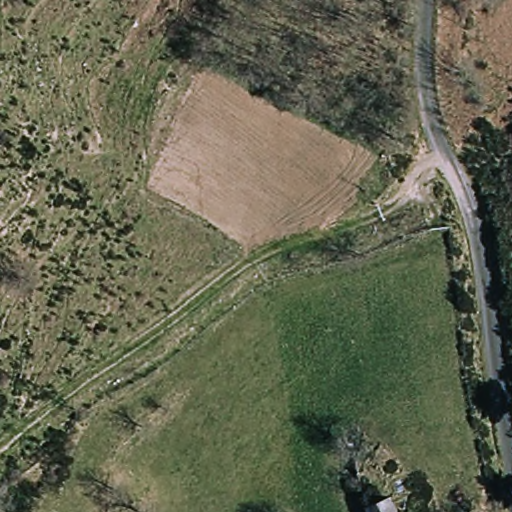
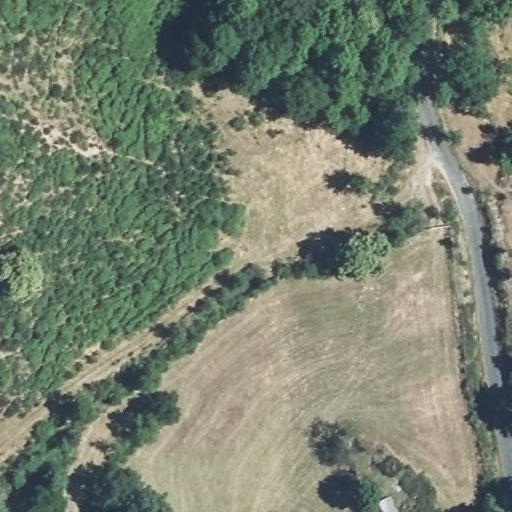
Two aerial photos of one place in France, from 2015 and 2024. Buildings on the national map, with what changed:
unchanged [(393,512),(368,512),(366,505),(389,497),(393,512)]

